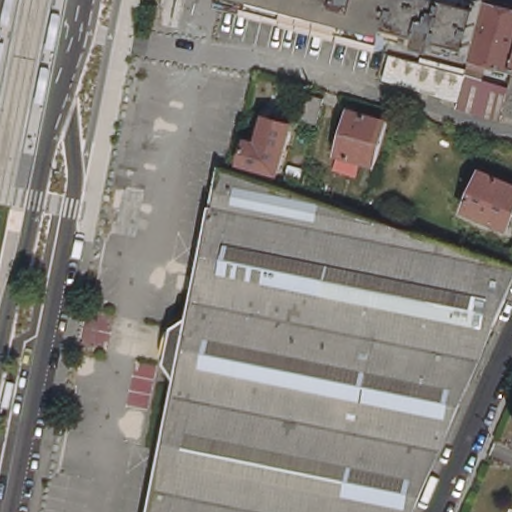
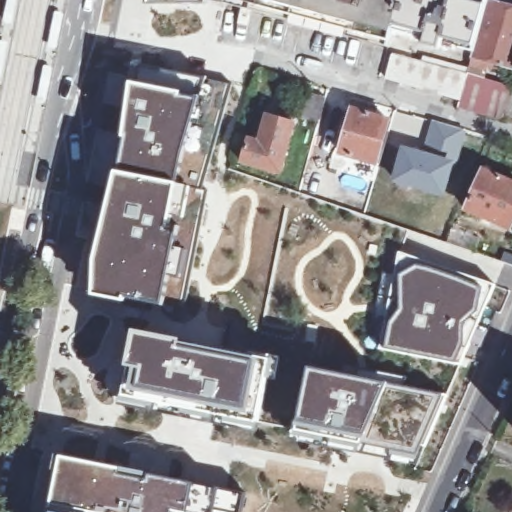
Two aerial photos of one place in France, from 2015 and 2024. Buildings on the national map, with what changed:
unchanged [(233,0),(397,0),(394,14),(391,25),(386,41),(269,10),(233,0)]
unchanged [(484,0),(482,9),(476,30),(471,46),(436,37),(434,46),(423,44),(426,34),(391,25),(394,14),(397,0),(482,0),(484,0)]
unchanged [(499,5),(501,5),(505,6),(508,7),(512,8),(512,67),(469,56),(470,53),(470,50),(471,46),(476,30),(482,9),(484,0),(487,1),(499,5)]
unchanged [(473,112),(471,112),(466,110),(460,109),(456,107),(455,107),(454,106),(455,102),(456,99),(436,94),(392,80),(383,77),(389,52),(420,61),(421,56),(465,69),(463,74),(507,86),(508,81),(511,73),(512,73),(512,116),(510,115),(501,112),(500,112),(498,117),(498,119),(497,120),(491,118),(487,116),(481,115),(479,114),(473,112)]
new [(173,72),(175,64),(190,66),(188,75),(233,84),(203,189),(209,190),(185,309),(96,290),(141,65),(173,72)]
unchanged [(305,119),(313,93),(329,98),(322,124),(305,119)]
unchanged [(332,174),(337,156),(350,114),(386,125),(373,168),(360,164),(355,181),(332,174)]
demolished [(420,136),(388,125),(392,114),(423,124),(420,136)]
unchanged [(295,124),(282,171),(245,161),(251,140),(261,144),(269,117),(295,124)]
new [(431,119),(467,129),(457,160),(421,149),(431,119)]
new [(400,143),(421,149),(457,160),(445,197),(388,181),(400,143)]
demolished [(170,361),(176,325),(193,313),(223,165),(232,167),(288,186),(302,191),(332,201),(365,212),(366,212),(440,239),(450,241),(512,263),(512,288),(497,323),(495,327),(491,335),(471,382),(470,386),(468,389),(462,402),(460,410),(427,483),(418,504),(416,508),(415,510),(415,512),(153,512),(181,378),(170,361)]
unchanged [(512,222),(511,224),(501,219),(500,224),(468,210),(485,171),(512,182),(512,222)]
new [(197,345),(197,337),(256,350),(287,192),(503,265),(415,466),(260,433),(120,405),(136,332),(197,345)]
new [(220,490),(246,495),(242,512),(52,512),(61,456),(194,483),(220,490)]

